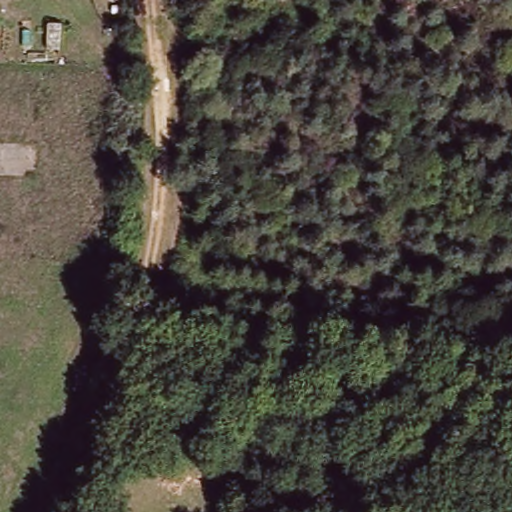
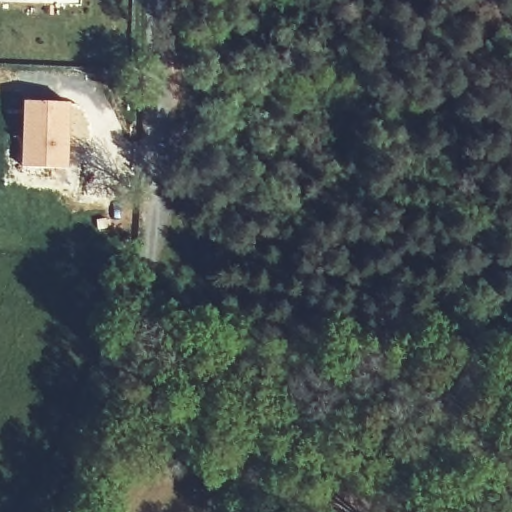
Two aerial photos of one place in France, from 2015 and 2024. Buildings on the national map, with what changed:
new [(70,101),(68,169),(22,168),(24,101),(70,101)]

